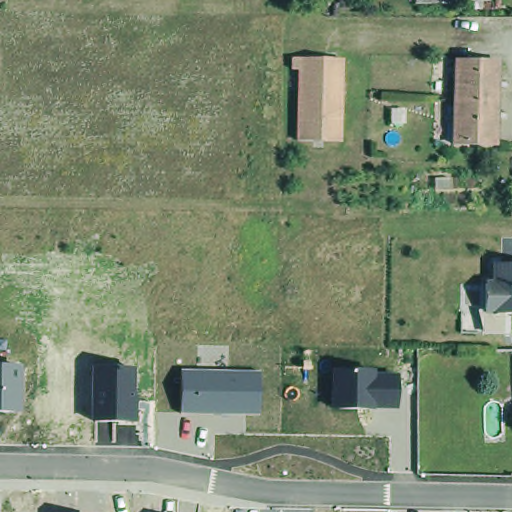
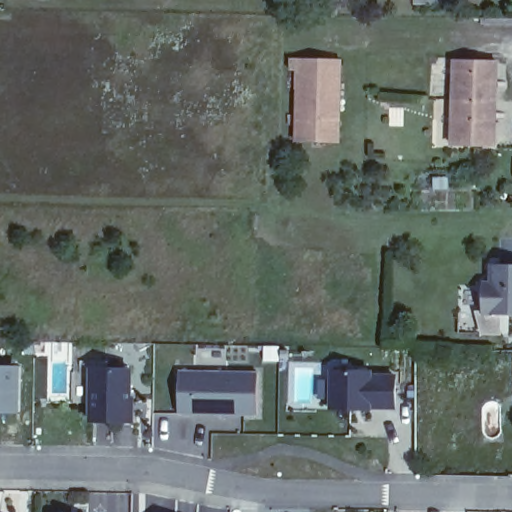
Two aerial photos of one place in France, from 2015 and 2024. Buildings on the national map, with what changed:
unchanged [(417,1),(417,0),(449,0),(449,1),(417,1)]
unchanged [(302,107),(303,65),(294,64),(294,52),(347,53),(345,107),(302,107)]
unchanged [(452,109),(452,54),(497,55),(496,110),(452,109)]
unchanged [(345,136),(302,135),(302,107),(345,107),(345,136)]
unchanged [(496,138),(452,137),(452,109),(496,110),(496,138)]
unchanged [(512,265),(512,316),(481,316),(480,282),(490,282),(489,264),(512,265)]
unchanged [(0,413),(0,365),(22,364),(22,413),(0,413)]
unchanged [(133,396),(136,396),(136,423),(90,423),(90,367),(132,367),(133,396)]
unchanged [(397,410),(330,408),(330,368),(374,369),(374,373),(399,374),(397,410)]
unchanged [(259,414),(180,413),(180,369),(259,370),(259,414)]

